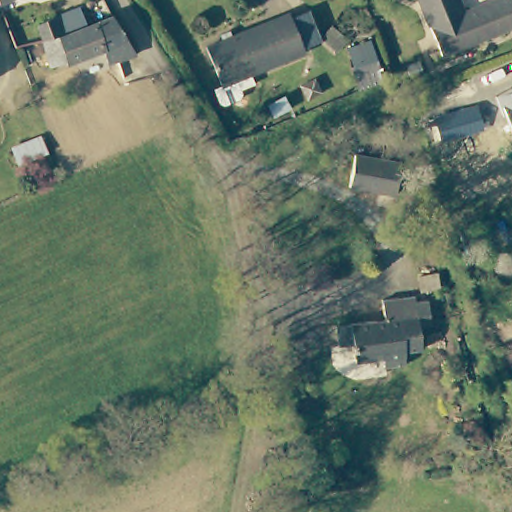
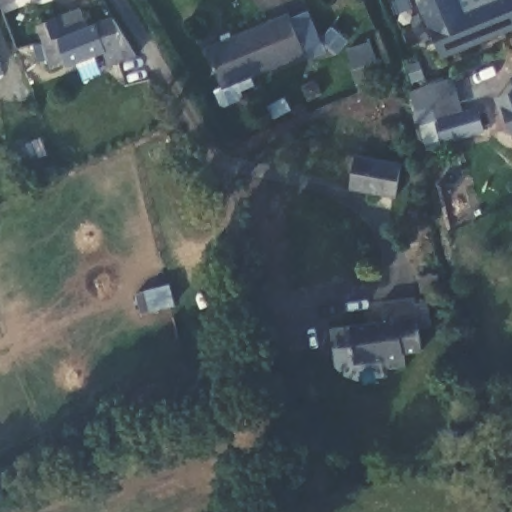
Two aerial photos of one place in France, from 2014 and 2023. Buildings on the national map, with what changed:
unchanged [(0,5),(0,0),(14,0),(0,5)]
unchanged [(416,0),(457,0),(466,20),(512,1),(512,33),(444,62),(416,0)]
unchanged [(135,57),(107,67),(103,55),(66,69),(65,66),(50,72),(43,45),(37,27),(56,20),(57,22),(81,12),(87,29),(111,20),(135,57)]
unchanged [(203,54),(287,16),(304,55),(220,93),(203,54)]
unchanged [(512,91),(512,141),(496,96),(512,91)]
unchanged [(442,141),(437,119),(478,109),(485,131),(442,141)]
unchanged [(356,180),(362,149),(407,156),(402,188),(356,180)]
unchanged [(412,299),(412,305),(425,303),(428,328),(416,330),(418,351),(402,355),(403,368),(382,371),(381,363),(354,368),(351,348),(336,350),(333,331),(382,324),(380,303),(412,299)]

